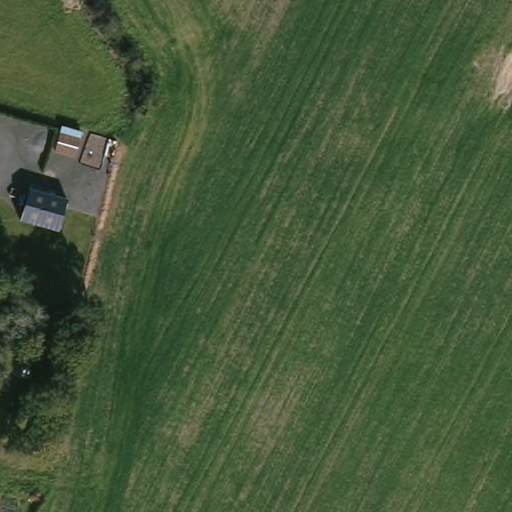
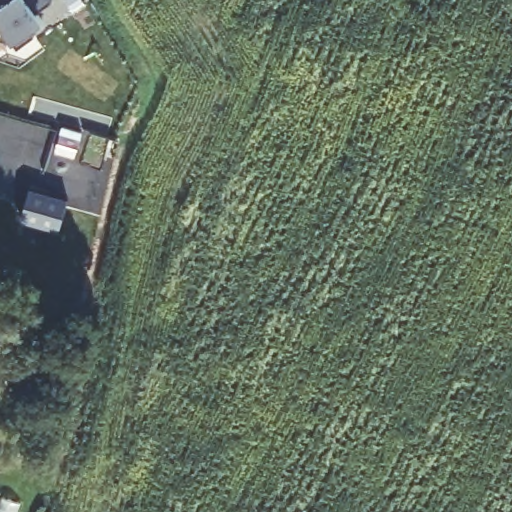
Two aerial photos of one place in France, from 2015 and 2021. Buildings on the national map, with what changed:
new [(13,41),(0,23),(0,0),(51,0),(51,1),(36,12),(42,21),(29,30),(34,36),(19,48),(13,41)]
unchanged [(57,229),(21,218),(30,188),(68,198),(57,229)]

